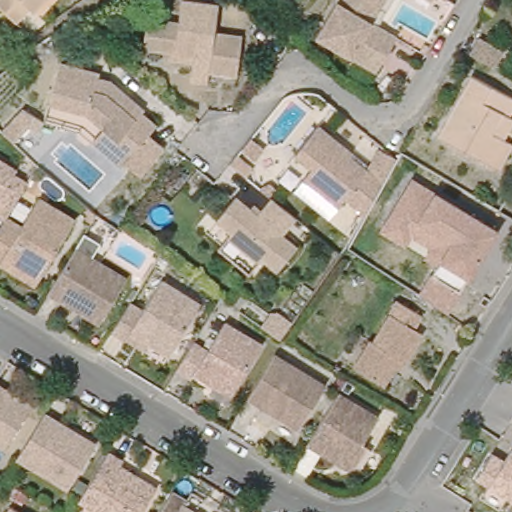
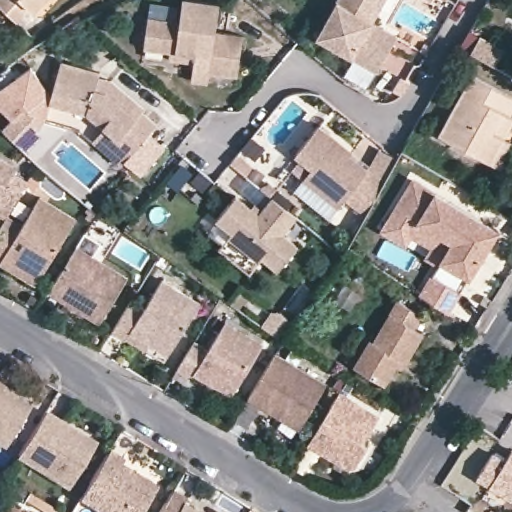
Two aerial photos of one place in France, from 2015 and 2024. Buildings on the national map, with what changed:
unchanged [(33,10),(30,7),(16,22),(0,7),(0,0),(43,0),(33,10)]
unchanged [(175,47),(148,43),(153,12),(185,17),(187,0),(224,0),(220,27),(247,31),(242,71),(215,67),(213,78),(196,76),(198,57),(173,54),(175,47)]
unchanged [(377,71),(317,37),(337,0),(385,0),(372,22),(397,36),(392,45),(377,71)]
unchanged [(495,66),(470,52),(479,37),(503,51),(495,66)]
unchanged [(155,129),(170,142),(145,170),(129,156),(126,160),(112,147),(123,135),(93,110),(54,99),(65,57),(105,67),(104,72),(115,75),(150,104),(147,107),(162,120),(155,129)]
new [(12,140),(1,130),(24,105),(11,119),(0,108),(0,88),(30,67),(52,96),(44,124),(37,132),(27,123),(12,140)]
unchanged [(500,169),(491,164),(438,135),(472,74),(512,96),(512,111),(510,116),(512,117),(512,123),(503,139),(505,139),(512,143),(512,145),(500,169)]
unchanged [(346,199),(338,207),(303,179),(312,168),(295,154),(319,125),(352,153),(350,156),(368,171),(382,146),(397,159),(383,183),(365,215),(346,199)]
unchanged [(265,148),(255,160),(242,150),(244,147),(252,137),(265,148)]
unchanged [(8,210),(7,211),(5,214),(0,210),(0,153),(17,164),(14,168),(28,177),(8,210)]
unchanged [(253,168),(247,176),(231,162),(237,155),(253,168)]
unchanged [(430,247),(409,235),(403,245),(380,232),(385,222),(409,181),(490,227),(495,230),(462,286),(447,312),(420,294),(437,265),(425,257),(430,247)]
unchanged [(0,223),(3,217),(5,214),(7,211),(22,220),(40,192),(76,214),(39,273),(35,279),(0,257),(0,223)]
unchanged [(283,234),(297,246),(277,271),(262,258),(259,262),(228,237),(232,232),(217,219),(236,196),(258,214),(272,197),(293,214),(297,217),(283,234)]
unchanged [(54,287),(82,242),(132,273),(105,318),(85,306),(67,295),(54,287)]
unchanged [(127,333),(112,327),(130,297),(143,305),(162,275),(200,298),(168,350),(150,338),(145,345),(127,333)]
unchanged [(396,366),(385,385),(353,366),(370,340),(373,341),(398,301),(422,316),(415,328),(423,333),(405,362),(400,368),(396,366)]
unchanged [(280,339),(262,326),(272,312),(277,310),(293,322),(280,339)]
unchanged [(232,391),(195,368),(192,372),(177,364),(187,348),(195,337),(208,345),(225,317),(263,340),(232,391)]
unchanged [(248,397),(267,366),(275,353),(326,385),(299,428),(278,416),(262,406),(248,397)]
unchanged [(0,444),(0,383),(32,402),(5,447),(0,444)]
unchanged [(363,442),(368,446),(355,466),(347,467),(308,443),(310,440),(340,392),(379,417),(363,442)]
unchanged [(68,488),(17,457),(45,411),(97,442),(68,488)]
unchanged [(107,454),(109,450),(123,459),(120,464),(135,472),(157,486),(155,491),(141,512),(99,512),(79,499),(107,454)]
unchanged [(472,483),(488,459),(500,467),(508,456),(512,458),(512,508),(472,483)]
unchanged [(185,498),(182,503),(197,512),(159,512),(172,490),(185,498)]
unchanged [(30,512),(3,512),(10,500),(30,512)]

